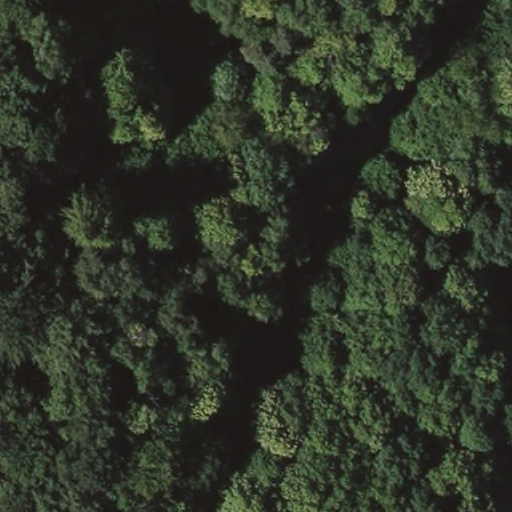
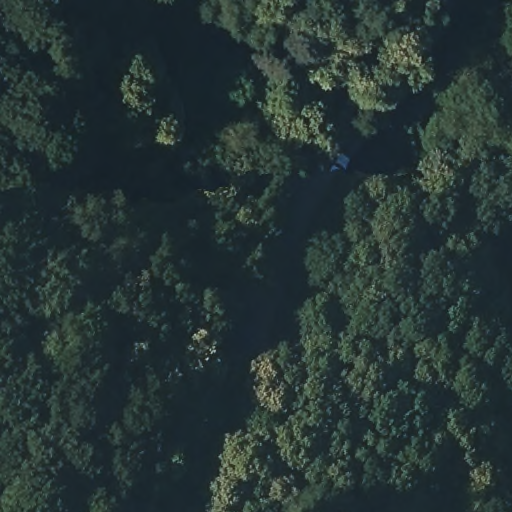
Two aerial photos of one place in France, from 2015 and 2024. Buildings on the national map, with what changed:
unchanged [(86,63),(85,79),(72,77),(74,61),(86,63)]

